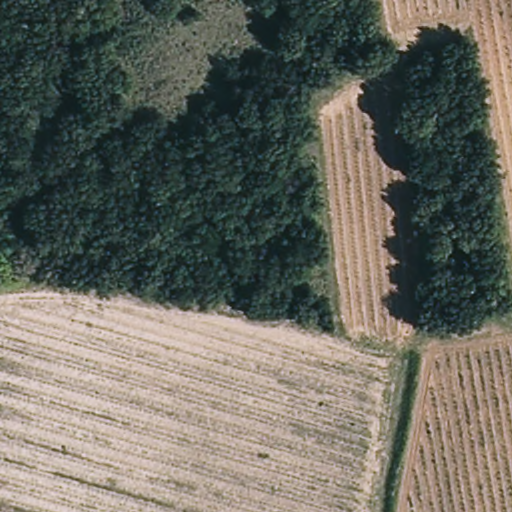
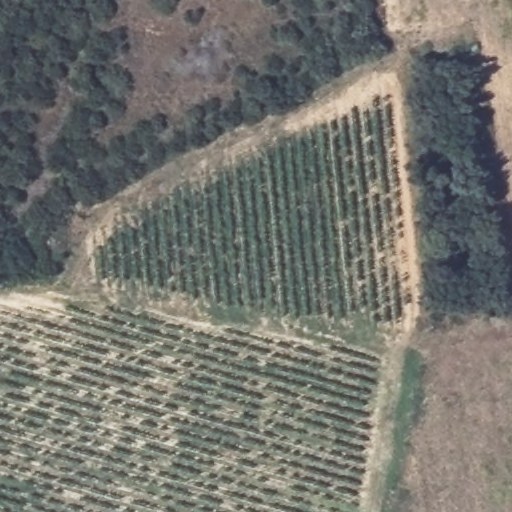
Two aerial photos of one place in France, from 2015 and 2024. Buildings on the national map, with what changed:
unchanged [(71,218),(66,217),(72,197),(77,198),(71,218)]

